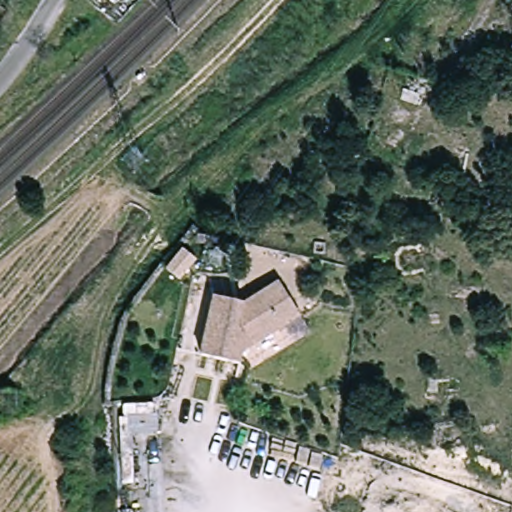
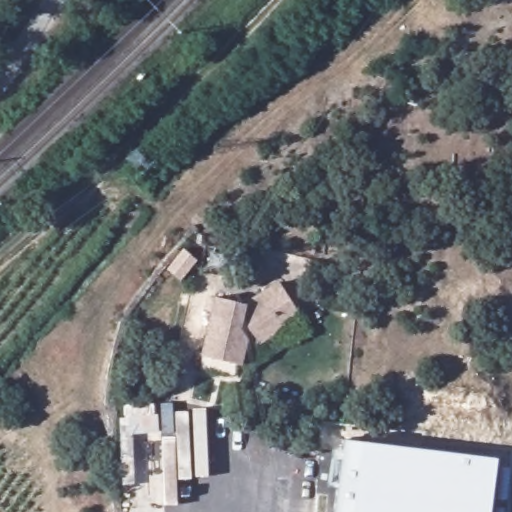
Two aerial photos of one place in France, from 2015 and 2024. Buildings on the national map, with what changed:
unchanged [(246,367),(207,358),(219,300),(250,307),(284,285),(299,308),(306,320),(290,330),(269,343),(249,355),(246,367)]
new [(157,430),(132,430),(135,485),(123,486),(118,418),(125,417),(124,405),(157,403),(157,430)]
unchanged [(13,406),(13,427),(0,427),(0,406),(13,406)]
new [(488,512),(333,512),(341,438),(495,457),(488,512)]

